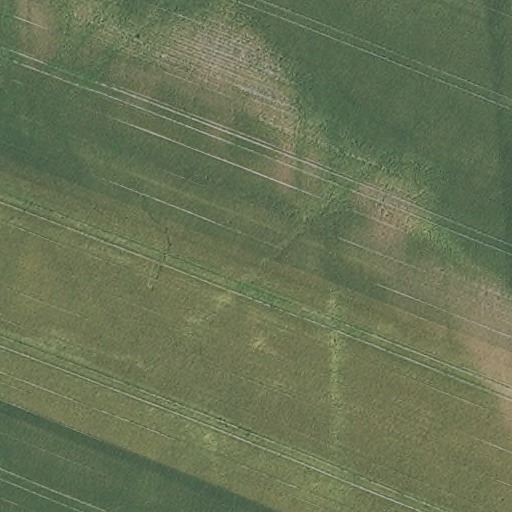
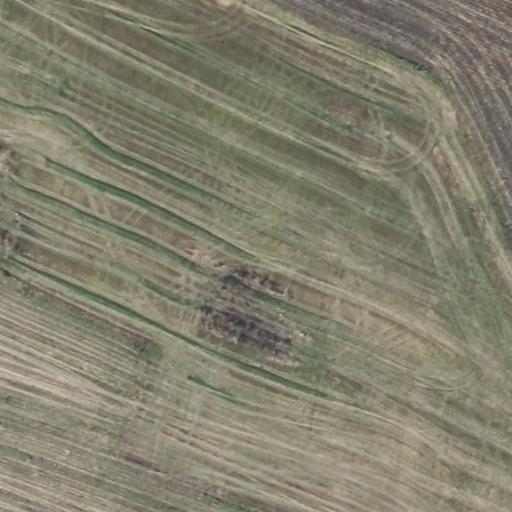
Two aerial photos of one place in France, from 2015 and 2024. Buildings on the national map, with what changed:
[]

